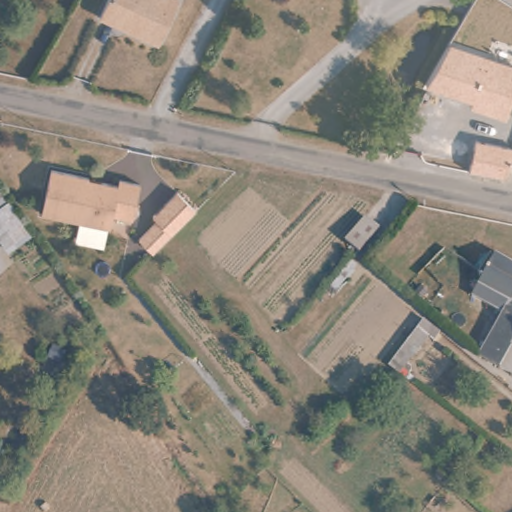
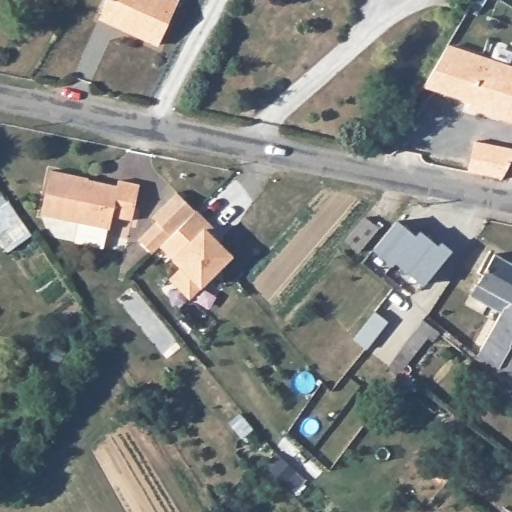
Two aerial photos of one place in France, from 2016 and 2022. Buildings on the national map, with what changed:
unchanged [(175,5),(157,50),(138,42),(139,39),(115,27),(113,31),(97,24),(108,0),(163,0),(175,5)]
unchanged [(512,65),(512,97),(504,119),(470,110),(472,100),(425,85),(449,44),(512,65)]
unchanged [(512,146),(512,160),(507,176),(471,165),(480,137),(512,146)]
unchanged [(116,188),(117,182),(138,186),(131,222),(111,218),(109,231),(40,216),(49,172),(88,180),(88,182),(116,188)]
unchanged [(176,192),(196,212),(151,255),(137,241),(156,222),(150,217),(176,192)]
unchanged [(11,260),(0,242),(0,195),(35,243),(11,260)]
new [(222,238),(219,242),(233,255),(201,287),(190,297),(168,277),(180,266),(171,257),(160,246),(196,212),(222,238)]
new [(423,282),(395,260),(391,265),(365,244),(357,252),(343,240),(363,215),(388,229),(396,219),(416,234),(420,229),(438,244),(441,240),(452,250),(423,282)]
demolished [(374,227),(358,246),(345,235),(361,216),(374,227)]
unchanged [(512,263),(512,355),(504,369),(479,354),(503,313),(477,300),(487,281),(480,277),(495,254),(512,263)]
new [(373,310),(387,320),(365,348),(352,337),(373,310)]
unchanged [(438,334),(433,341),(429,337),(398,375),(386,367),(421,322),(438,334)]
unchanged [(504,369),(512,355),(512,374),(504,369)]

